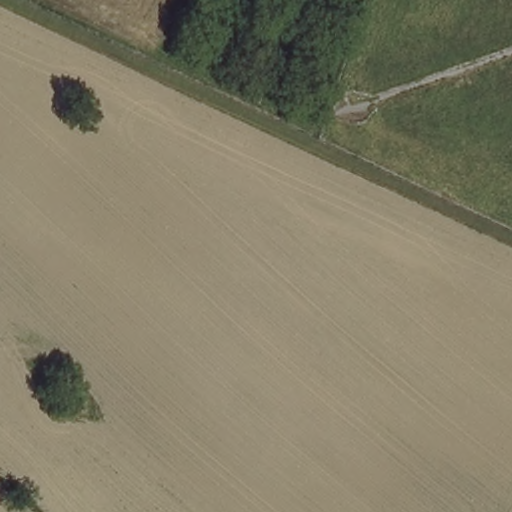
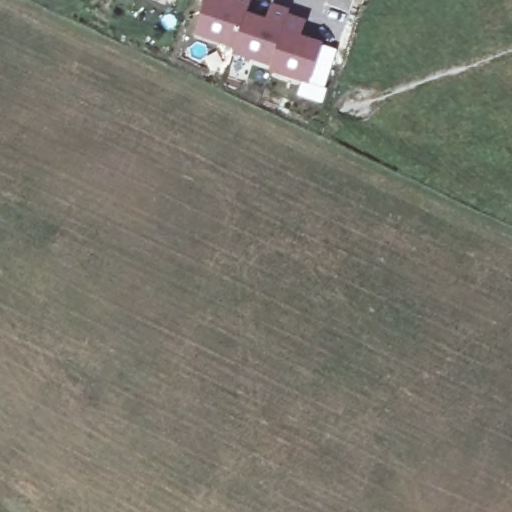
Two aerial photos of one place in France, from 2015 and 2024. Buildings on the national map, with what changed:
new [(216,1),(238,9),(241,0),(259,0),(243,46),(206,34),(216,1)]
new [(280,64),(242,51),(253,19),(275,26),(280,10),(296,15),(280,64)]
new [(311,25),(306,41),(328,49),(316,81),(279,69),(294,20),(311,25)]

